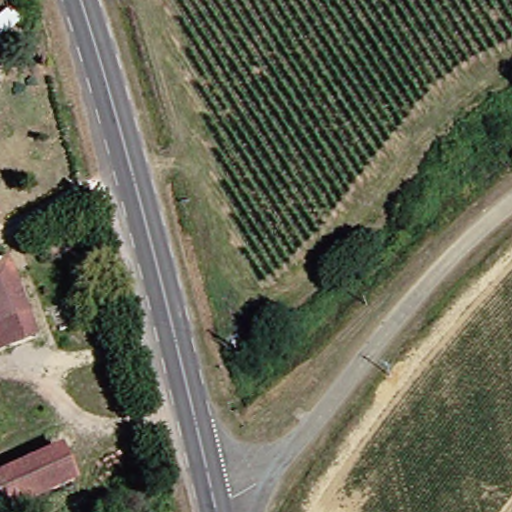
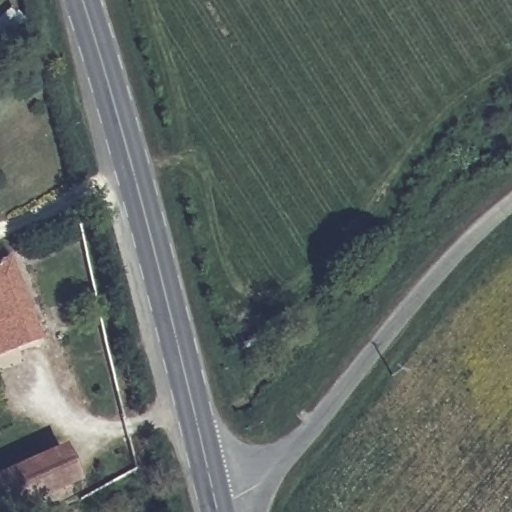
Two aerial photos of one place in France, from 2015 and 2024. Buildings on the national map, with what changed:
unchanged [(0,325),(0,264),(13,260),(29,316),(0,325)]
unchanged [(29,316),(36,339),(0,351),(0,325),(29,316)]
unchanged [(0,511),(0,472),(62,453),(72,487),(0,511)]

